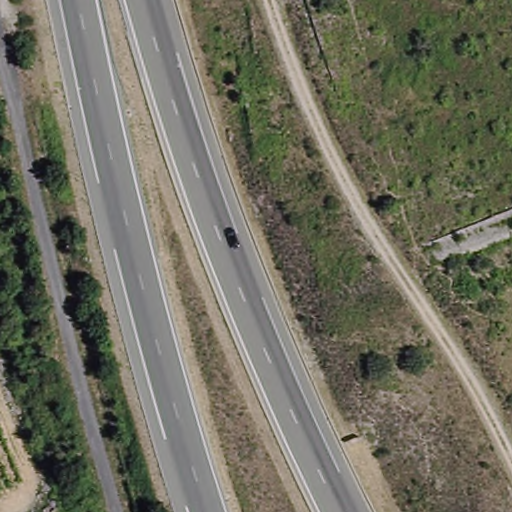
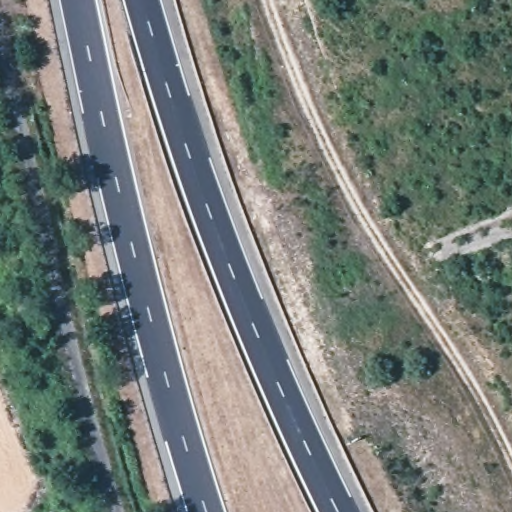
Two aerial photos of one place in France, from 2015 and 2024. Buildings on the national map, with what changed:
unchanged [(271,371),(253,377),(249,360),(266,355),(271,371)]
unchanged [(127,364),(131,386),(111,389),(108,367),(127,364)]

